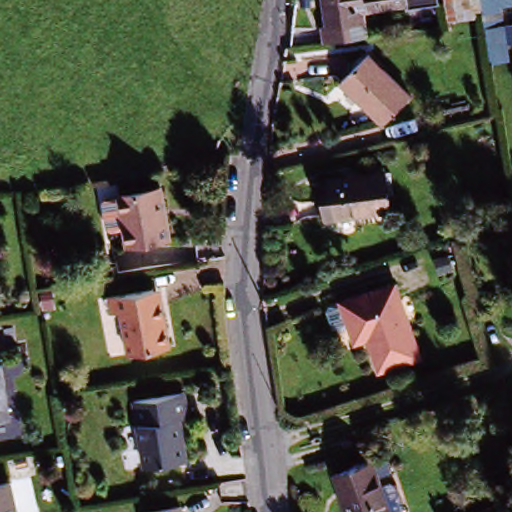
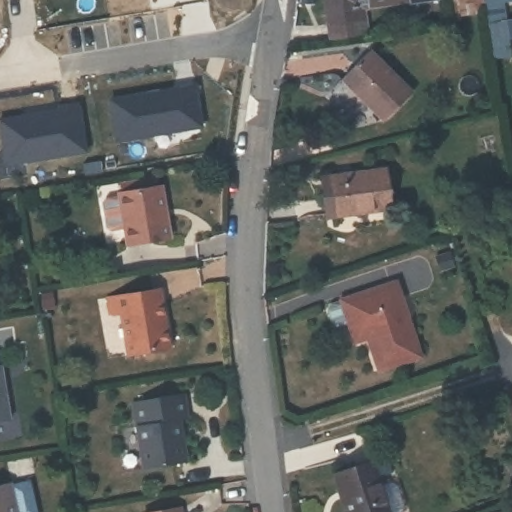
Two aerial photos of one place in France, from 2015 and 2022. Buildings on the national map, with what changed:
unchanged [(326,0),(440,0),(438,16),(440,24),(416,24),(413,13),(370,13),(370,37),(327,41),(326,0)]
unchanged [(479,1),(480,12),(438,16),(440,0),(495,0),(479,1)]
unchanged [(512,32),(512,60),(493,61),(480,12),(479,1),(495,0),(506,0),(512,32)]
unchanged [(392,111),(350,74),(369,50),(411,88),(392,111)]
new [(173,73),(190,71),(196,112),(113,125),(106,84),(140,79),(173,73)]
new [(57,109),(77,105),(85,152),(5,165),(0,133),(0,121),(57,112),(57,109)]
unchanged [(317,210),(315,173),(368,171),(370,206),(317,210)]
unchanged [(110,235),(106,210),(108,206),(122,204),(122,201),(125,200),(124,190),(158,185),(160,195),(164,194),(171,246),(130,253),(126,232),(110,235)]
unchanged [(421,352),(377,368),(366,333),(354,338),(341,298),(396,278),(421,352)]
unchanged [(122,316),(112,317),(110,300),(155,293),(162,292),(166,321),(170,352),(128,358),(122,316)]
unchanged [(11,421),(0,423),(0,368),(3,367),(11,421)]
unchanged [(140,471),(129,403),(178,395),(182,421),(174,422),(176,438),(181,464),(140,471)]
unchanged [(370,462),(387,512),(345,512),(333,474),(370,462)]
unchanged [(18,512),(0,512),(0,486),(11,484),(18,512)]
unchanged [(500,512),(493,512),(499,509),(500,512)]
unchanged [(181,512),(172,512),(181,510),(181,512)]

